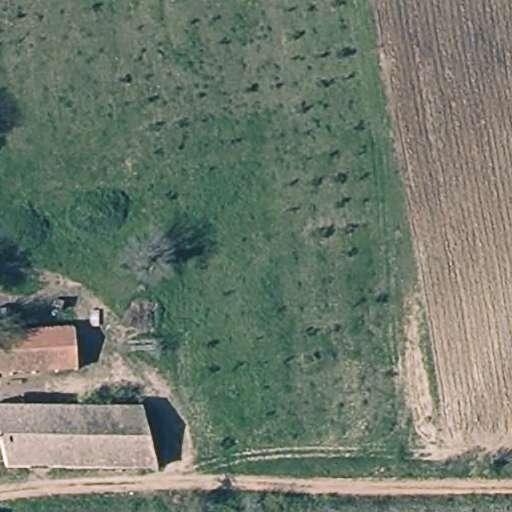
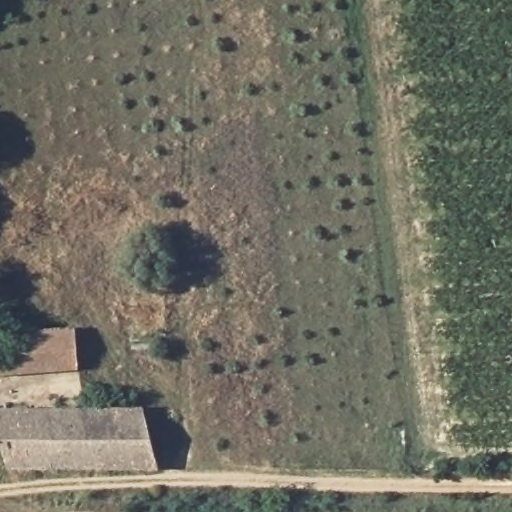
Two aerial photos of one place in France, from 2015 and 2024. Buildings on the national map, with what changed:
unchanged [(10,311),(10,323),(0,323),(0,311),(10,311)]
unchanged [(82,372),(0,378),(0,339),(80,335),(82,372)]
unchanged [(156,474),(6,475),(0,475),(0,418),(143,417),(156,474)]

